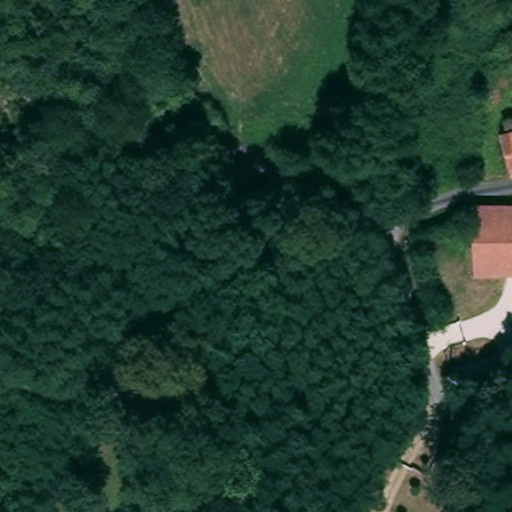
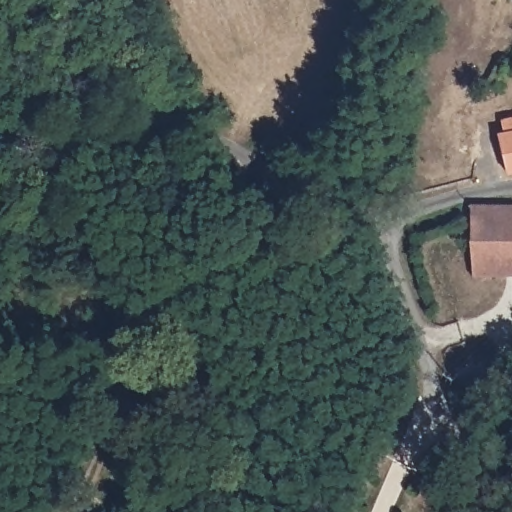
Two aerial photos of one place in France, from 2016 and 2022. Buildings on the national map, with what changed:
unchanged [(503,63),(484,101),(476,100),(464,92),(487,54),(497,60),(503,63)]
unchanged [(496,172),(492,131),(498,131),(496,111),(512,109),(512,170),(498,172),(496,172)]
unchanged [(512,202),(512,272),(470,275),(466,202),(467,201),(512,202)]
unchanged [(452,368),(495,356),(499,377),(498,377),(457,388),(452,368)]

